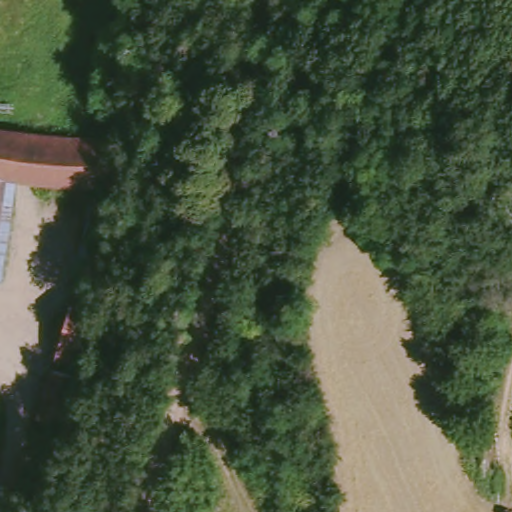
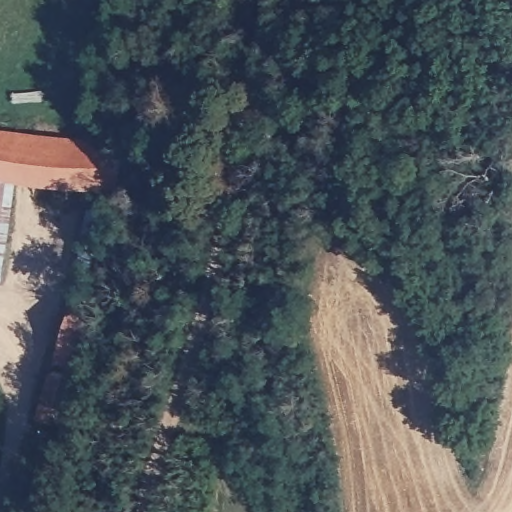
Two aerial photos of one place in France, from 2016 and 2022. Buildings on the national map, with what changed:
unchanged [(120,150),(128,151),(121,196),(8,180),(0,179),(0,132),(120,150)]
unchanged [(8,180),(0,237),(0,179),(8,180)]
unchanged [(105,214),(87,278),(75,275),(92,210),(105,214)]
unchanged [(78,357),(57,350),(74,290),(78,277),(92,280),(90,294),(96,296),(78,357)]
unchanged [(63,431),(49,427),(53,412),(41,408),(55,361),(82,368),(63,431)]

